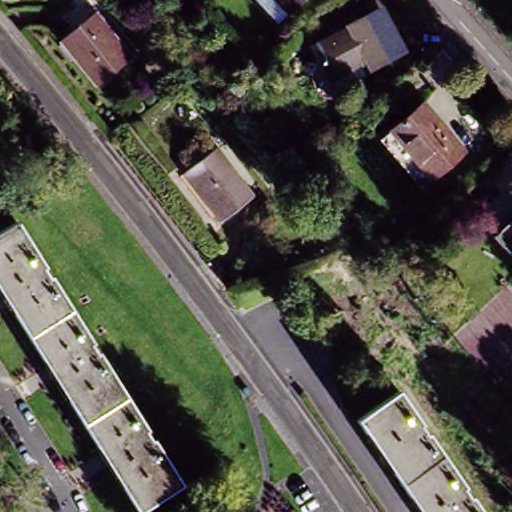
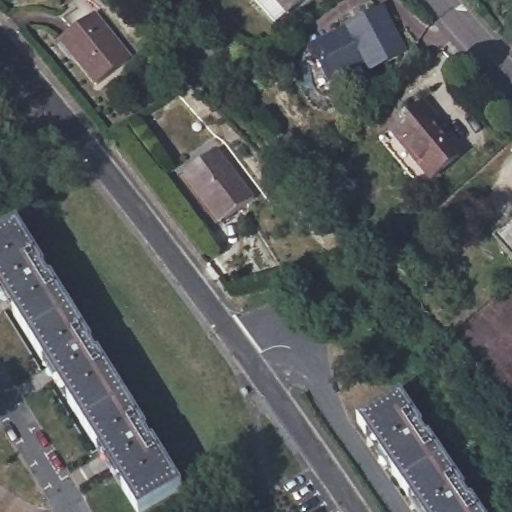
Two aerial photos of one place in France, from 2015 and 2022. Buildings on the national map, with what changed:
unchanged [(258,0),(304,0),(278,23),(258,0)]
unchanged [(329,89),(323,77),(307,44),(345,27),(344,22),(377,6),(399,49),(365,66),(362,59),(352,64),(358,76),(329,89)]
unchanged [(88,16),(127,60),(95,88),(57,43),(88,16)]
unchanged [(413,111),(454,157),(422,185),(381,138),(413,111)]
unchanged [(175,180),(210,154),(249,204),(214,230),(175,180)]
unchanged [(512,225),(512,267),(487,239),(508,221),(512,225)]
unchanged [(15,226),(179,493),(149,512),(131,512),(0,299),(0,235),(15,226)]
unchanged [(395,392),(475,512),(414,512),(354,421),(395,392)]

